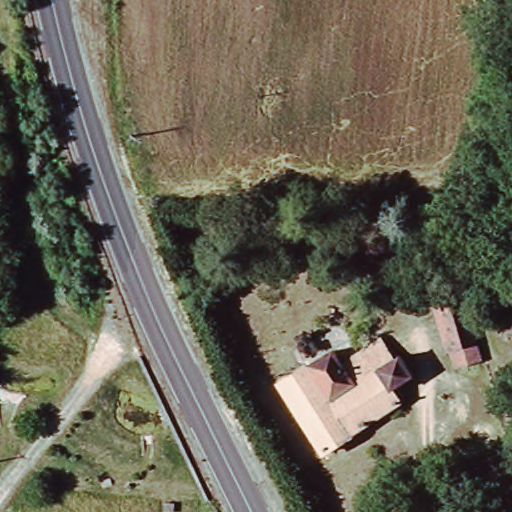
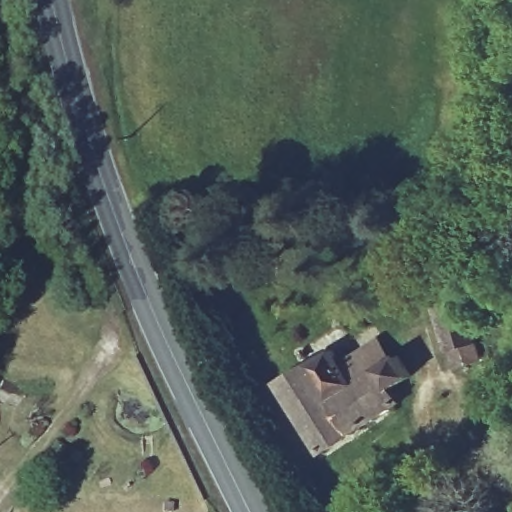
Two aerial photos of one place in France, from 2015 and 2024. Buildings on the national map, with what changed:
unchanged [(451,364),(433,326),(461,311),(480,350),(451,364)]
unchanged [(338,371),(382,344),(394,364),(351,390),(338,371)]
unchanged [(400,360),(413,381),(393,394),(401,407),(322,456),(279,388),(330,357),(338,371),(351,390),(394,364),(400,360)]

